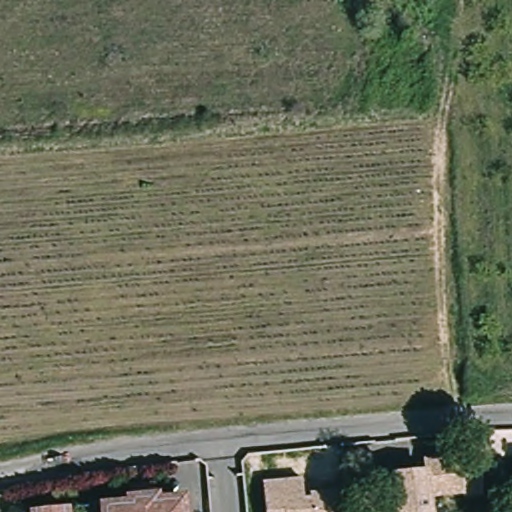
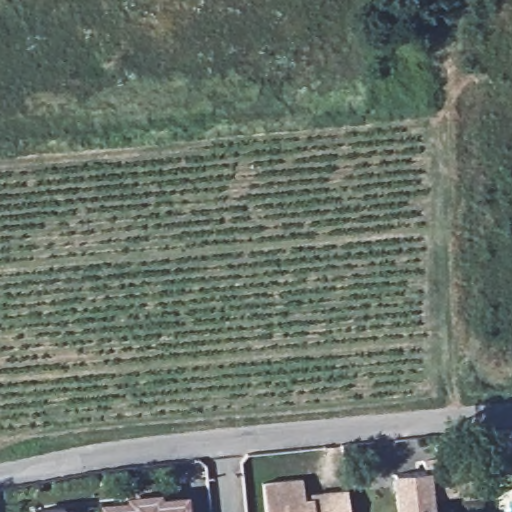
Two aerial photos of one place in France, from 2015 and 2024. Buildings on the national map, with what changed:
unchanged [(482,492),(464,494),(463,489),(429,492),(430,512),(399,512),(396,472),(425,469),(425,459),(462,456),(482,454),(482,492)]
unchanged [(271,485),(310,481),(311,501),(319,501),(318,496),(354,493),(355,493),(356,512),(273,512),(271,485)]
unchanged [(134,512),(133,507),(156,504),(157,509),(184,507),(184,512),(128,512),(134,512)]
unchanged [(68,511),(68,512),(53,512),(68,511)]

